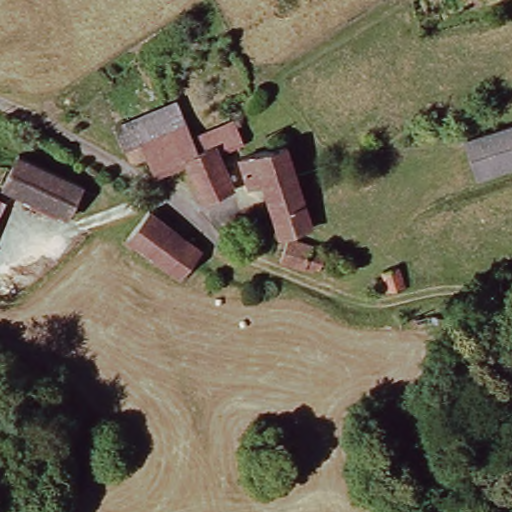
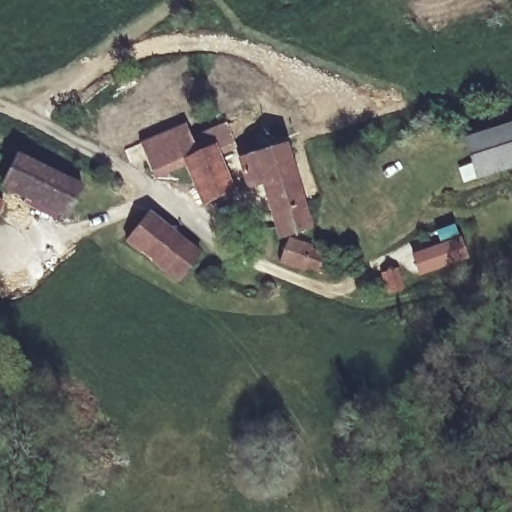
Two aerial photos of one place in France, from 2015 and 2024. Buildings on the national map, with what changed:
unchanged [(136,150),(118,154),(108,125),(171,101),(181,127),(134,144),(136,150)]
unchanged [(460,139),(512,122),(512,163),(472,177),(460,139)]
unchanged [(233,123),(236,130),(232,132),(238,146),(211,156),(226,195),(196,206),(177,160),(192,155),(186,140),(233,123)]
unchanged [(181,127),(186,140),(192,155),(177,160),(145,174),(136,150),(134,144),(181,127)]
unchanged [(243,189),(232,162),(279,147),(304,229),(273,239),(254,185),(243,189)]
unchanged [(0,192),(0,189),(12,157),(76,184),(63,219),(0,192)]
unchanged [(178,285),(123,245),(144,215),(199,257),(178,285)]
new [(441,244),(437,231),(454,225),(467,260),(419,276),(412,254),(441,244)]
unchanged [(224,246),(221,235),(241,229),(244,240),(224,246)]
unchanged [(311,276),(266,261),(271,244),(281,247),(283,242),(306,250),(304,255),(317,259),(311,276)]
unchanged [(386,281),(401,277),(409,300),(394,305),(386,281)]

